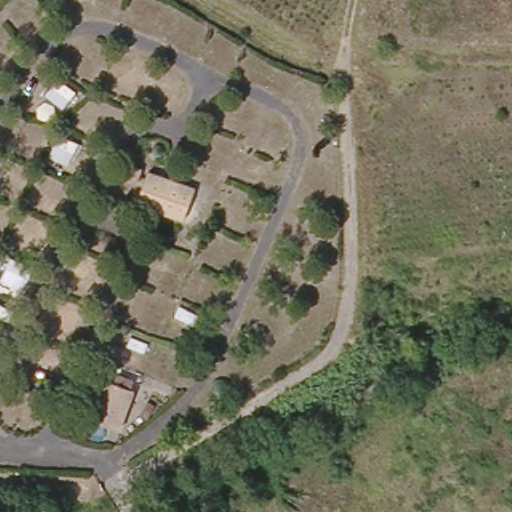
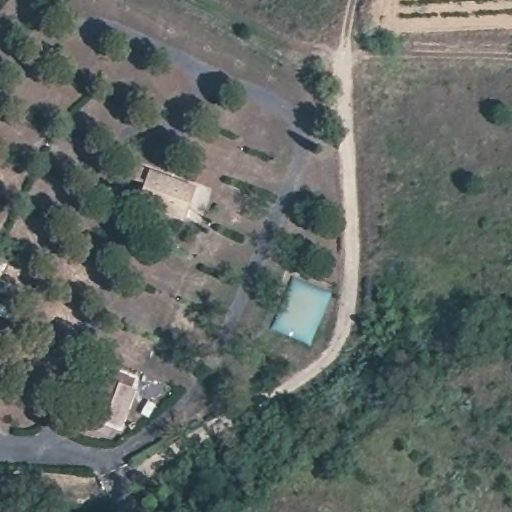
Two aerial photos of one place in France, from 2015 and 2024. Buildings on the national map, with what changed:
unchanged [(127,150),(147,157),(144,170),(122,164),(127,150)]
unchanged [(186,230),(135,211),(150,171),(199,191),(186,230)]
unchanged [(92,393),(97,378),(100,368),(132,379),(119,419),(87,408),(92,393)]

